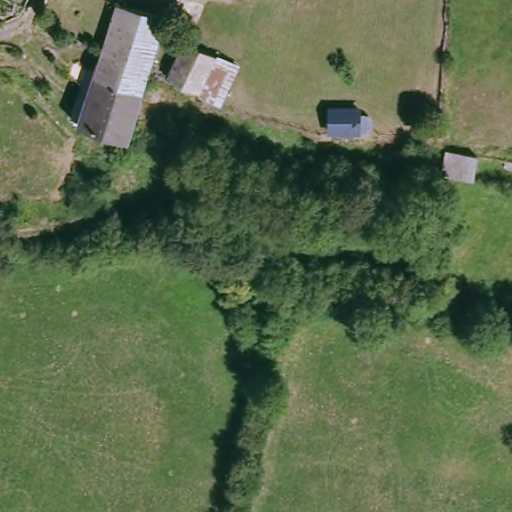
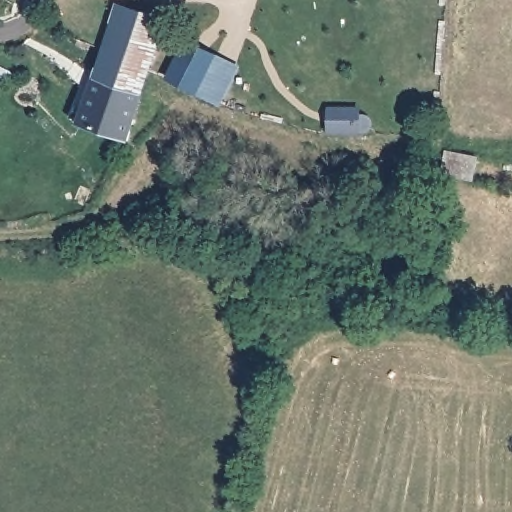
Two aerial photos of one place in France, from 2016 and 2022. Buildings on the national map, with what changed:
unchanged [(117,6),(164,23),(147,75),(139,96),(93,84),(95,76),(104,50),(117,6)]
unchanged [(190,39),(243,66),(227,106),(170,78),(190,39)]
unchanged [(125,141),(79,126),(83,113),(93,84),(139,96),(125,141)]
unchanged [(367,110),(367,133),(338,132),(340,108),(351,109),(367,110)]

